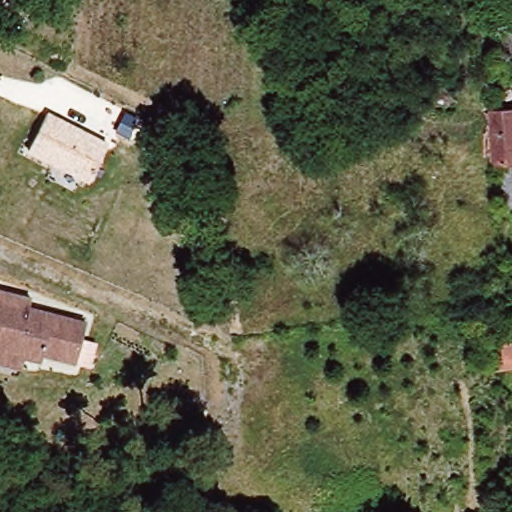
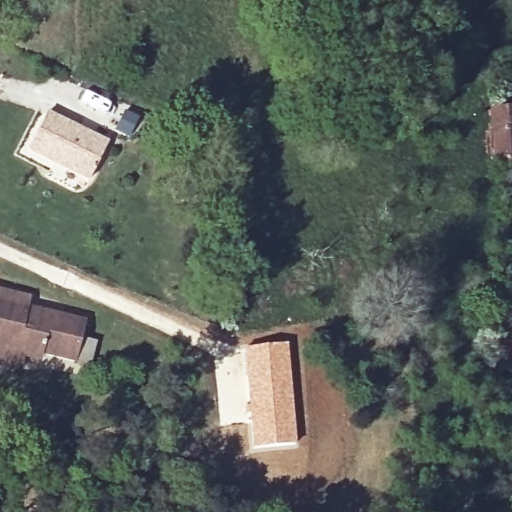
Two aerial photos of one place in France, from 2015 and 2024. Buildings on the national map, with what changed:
unchanged [(30,15),(22,34),(0,25),(0,0),(2,0),(1,4),(30,15)]
unchanged [(502,27),(512,26),(512,55),(507,55),(502,27)]
unchanged [(410,76),(377,77),(377,59),(407,58),(410,76)]
unchanged [(411,103),(391,105),(390,90),(410,89),(411,103)]
unchanged [(510,202),(509,164),(497,164),(497,144),(496,112),(512,111),(512,202),(510,202)]
unchanged [(85,183),(24,152),(42,116),(103,146),(85,183)]
unchanged [(29,308),(87,321),(74,366),(41,358),(16,370),(0,365),(0,291),(30,297),(29,308)]
unchanged [(498,368),(495,328),(512,326),(512,367),(498,368)]
new [(287,343),(295,445),(250,450),(242,347),(287,343)]

